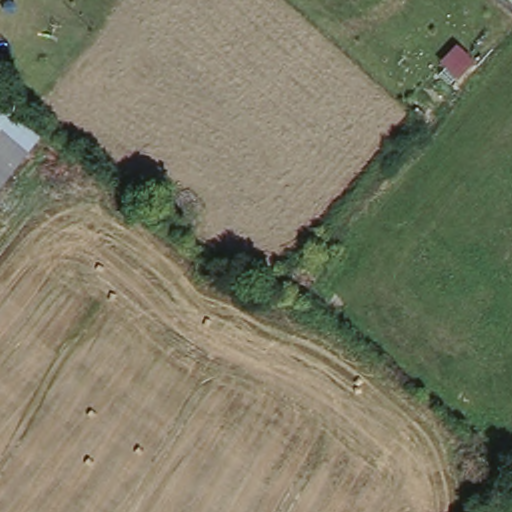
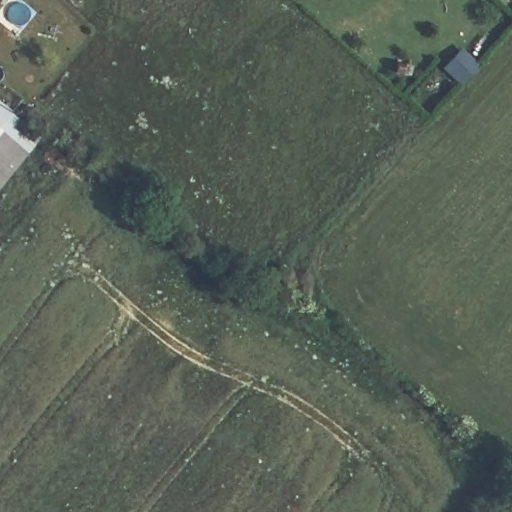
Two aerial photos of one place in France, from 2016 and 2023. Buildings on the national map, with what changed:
unchanged [(0,184),(0,106),(39,137),(0,184)]

